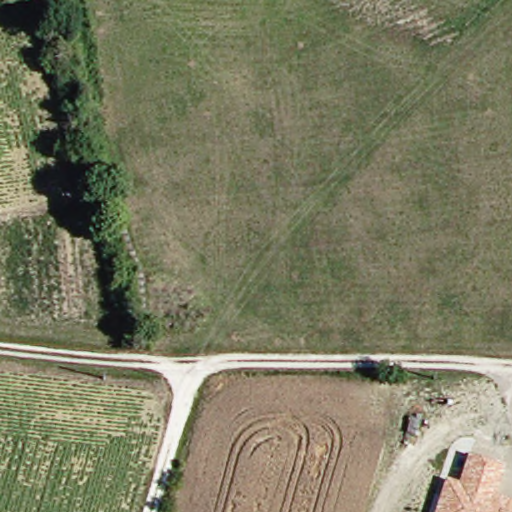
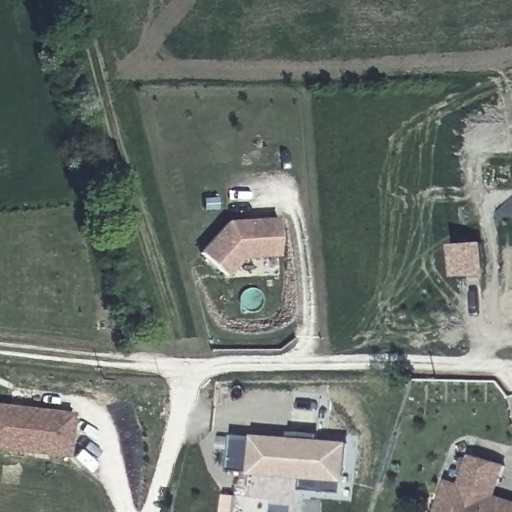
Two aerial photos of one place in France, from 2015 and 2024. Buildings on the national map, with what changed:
new [(225,224),(277,220),(279,255),(242,257),(225,277),(200,254),(225,224)]
new [(483,274),(454,276),(453,244),(481,242),(483,274)]
new [(70,415),(65,458),(0,450),(0,407),(70,415)]
new [(292,441),(286,440),(287,433),(292,433),(292,434),(305,435),(315,435),(315,443),(343,445),(340,495),(297,491),(298,478),(227,472),(230,436),(292,441)]
unchanged [(512,512),(430,512),(436,493),(443,496),(447,481),(462,487),(472,454),(502,463),(493,497),(512,502),(512,512)]

